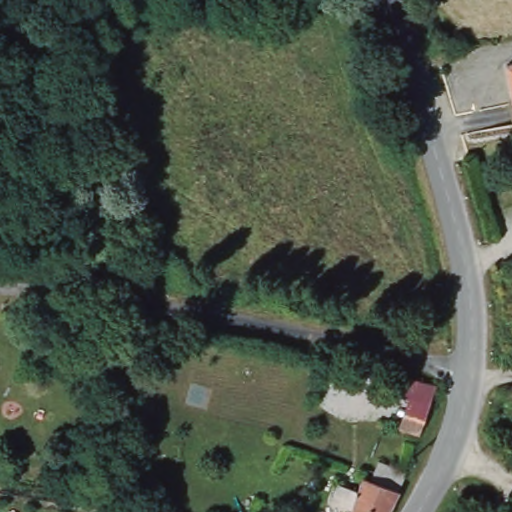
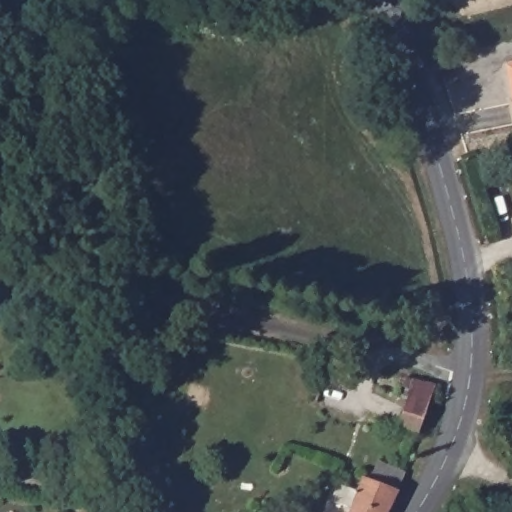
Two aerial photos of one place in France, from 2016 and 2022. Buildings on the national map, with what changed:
unchanged [(512,66),(512,98),(505,67),(512,66)]
unchanged [(324,341),(319,364),(292,356),(298,335),(324,341)]
unchanged [(417,436),(384,427),(400,375),(436,386),(417,436)]
unchanged [(354,505),(363,488),(369,489),(377,472),(393,478),(400,481),(399,483),(392,498),(399,501),(393,509),(391,512),(332,512),(343,498),(354,505)]

